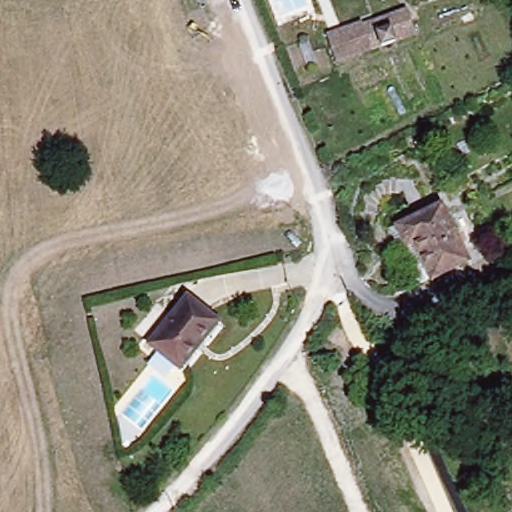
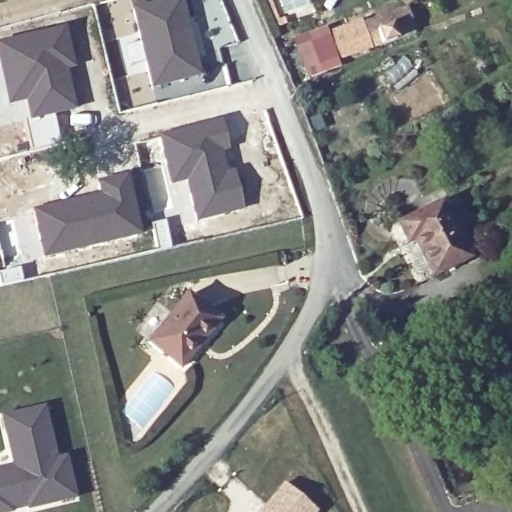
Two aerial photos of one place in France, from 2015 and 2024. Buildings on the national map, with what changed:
new [(136,37),(129,2),(139,0),(182,0),(203,75),(150,89),(145,72),(128,76),(120,42),(136,37)]
unchanged [(415,34),(336,62),(326,35),(361,22),(362,26),(408,11),(415,34)]
new [(74,69),(66,71),(72,111),(26,123),(22,104),(7,107),(0,73),(0,40),(63,27),(74,69)]
new [(224,114),(231,151),(224,153),(228,169),(231,168),(241,210),(195,222),(184,183),(170,186),(158,131),(224,114)]
new [(97,191),(95,182),(126,174),(143,233),(117,242),(43,258),(31,208),(97,191)]
unchanged [(474,254),(428,275),(408,237),(395,242),(387,224),(445,197),(474,254)]
unchanged [(215,319),(174,368),(144,342),(183,294),(215,319)]
new [(0,416),(46,403),(57,456),(67,454),(77,498),(15,512),(0,512),(0,465),(10,463),(0,416)]
new [(307,512),(254,512),(275,483),(309,509),(307,512)]

